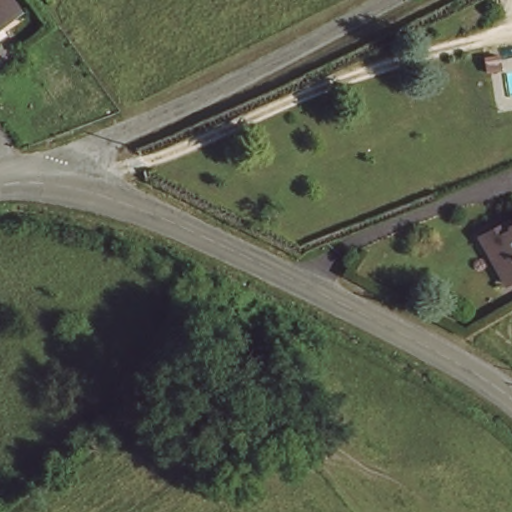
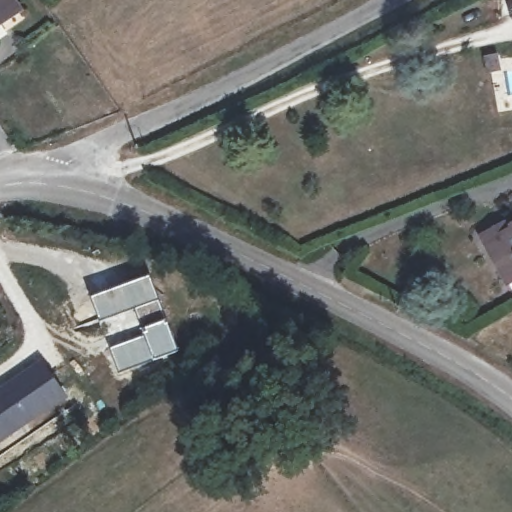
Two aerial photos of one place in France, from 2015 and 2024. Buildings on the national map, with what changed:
unchanged [(0,22),(0,0),(6,0),(15,15),(0,22)]
unchanged [(494,245),(488,235),(512,221),(512,275),(494,245)]
new [(149,275),(163,313),(105,338),(89,297),(149,275)]
new [(141,333),(139,329),(166,320),(178,351),(118,374),(108,346),(141,333)]
new [(68,397),(0,443),(0,387),(41,357),(68,397)]

